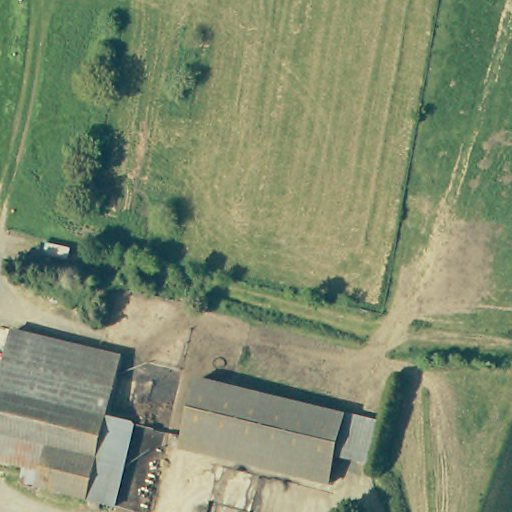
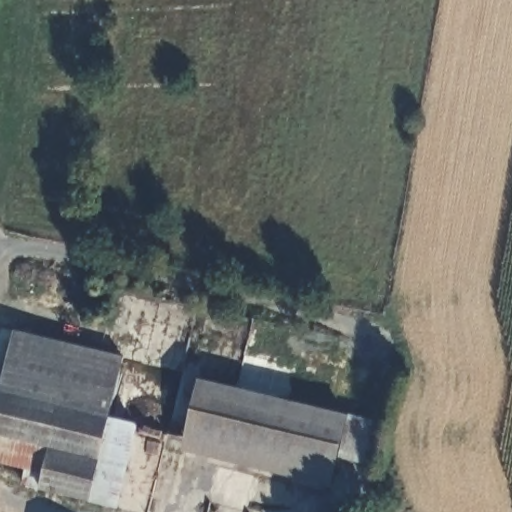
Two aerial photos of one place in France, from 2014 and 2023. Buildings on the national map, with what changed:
unchanged [(16,330),(124,356),(109,417),(22,396),(17,416),(0,413),(0,393),(16,330)]
unchanged [(195,378),(343,414),(329,473),(181,437),(195,378)]
unchanged [(17,416),(22,396),(109,417),(137,425),(116,508),(40,490),(45,472),(0,461),(0,413),(17,416)]

